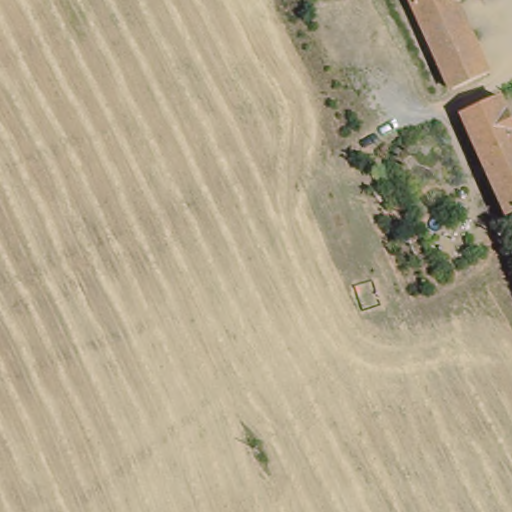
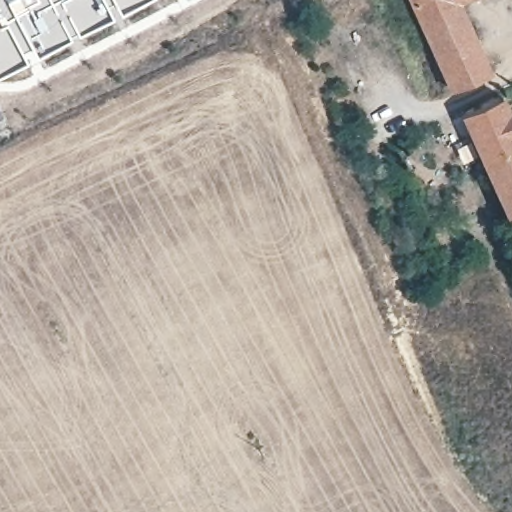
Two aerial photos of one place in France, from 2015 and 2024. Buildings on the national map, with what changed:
new [(35,53),(30,43),(21,48),(27,59),(0,72),(0,0),(138,0),(35,53)]
unchanged [(420,16),(413,0),(455,0),(420,16)]
unchanged [(488,70),(451,86),(420,16),(455,0),(458,0),(488,70)]
unchanged [(467,116),(504,100),(512,119),(512,216),(467,116)]

